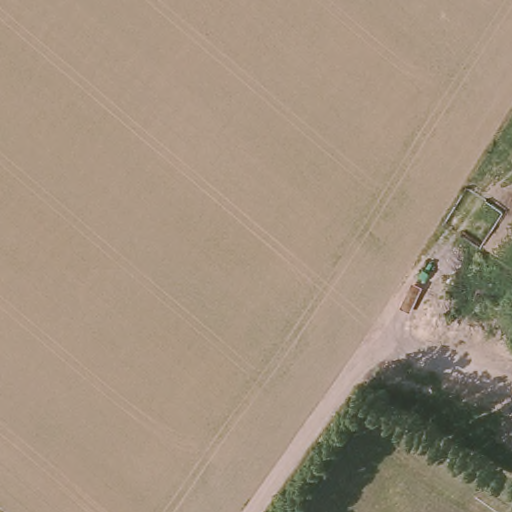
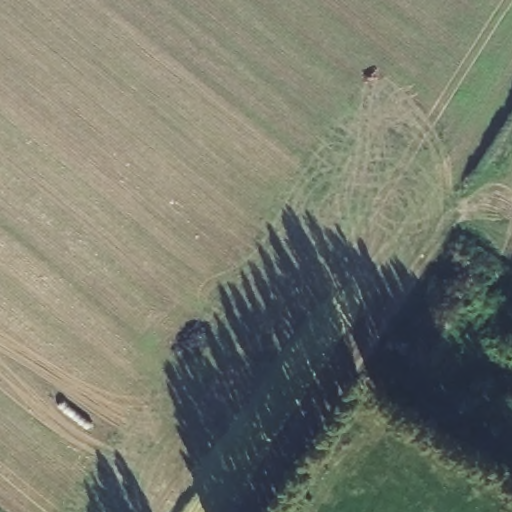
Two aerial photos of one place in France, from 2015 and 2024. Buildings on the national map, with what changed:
[]

